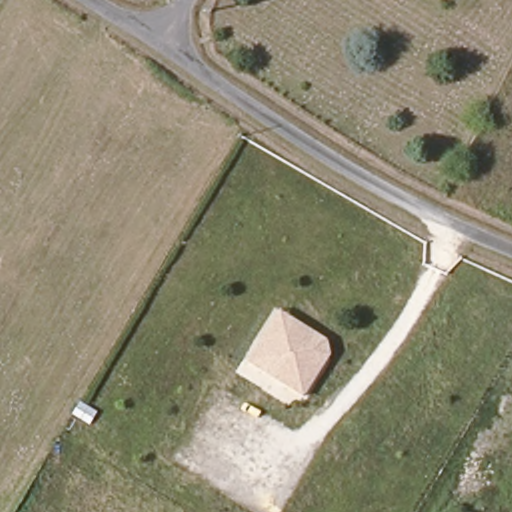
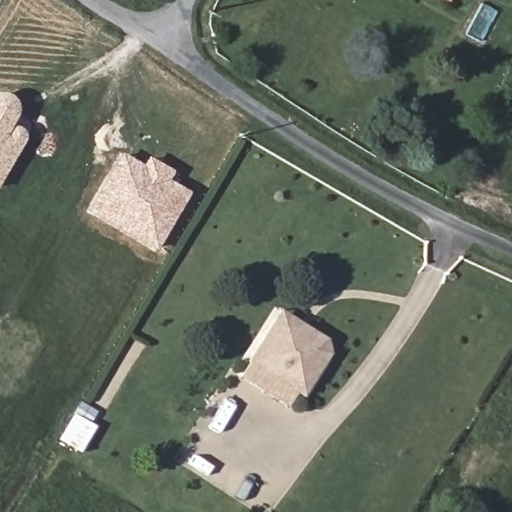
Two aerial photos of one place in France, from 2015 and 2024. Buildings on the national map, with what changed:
new [(9,95),(15,102),(17,109),(16,115),(11,126),(18,129),(21,131),(24,135),(24,141),(0,182),(0,95),(6,94),(9,95)]
new [(146,157),(173,172),(167,181),(189,194),(156,251),(86,211),(120,153),(141,166),(146,157)]
unchanged [(247,363),(273,320),(278,312),(325,340),(328,354),(323,362),(303,397),(247,363)]

